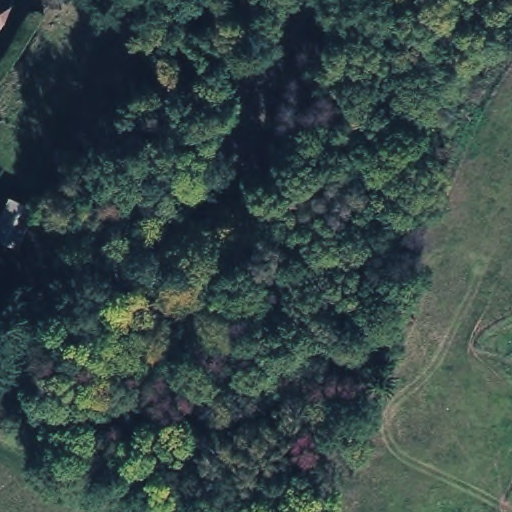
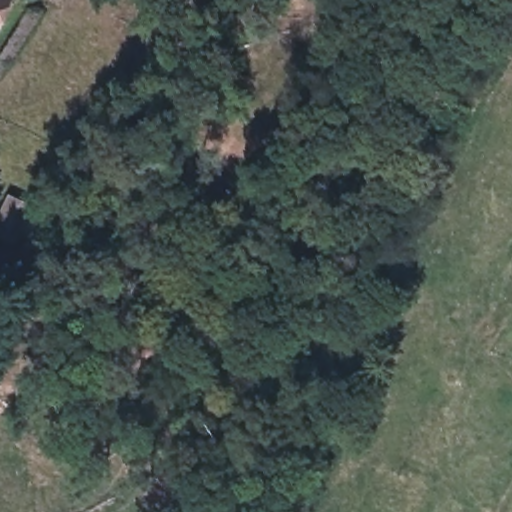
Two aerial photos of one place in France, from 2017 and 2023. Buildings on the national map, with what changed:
unchanged [(0,13),(0,1),(4,3),(0,13)]
unchanged [(0,225),(0,219),(7,203),(29,216),(18,235),(0,225)]

